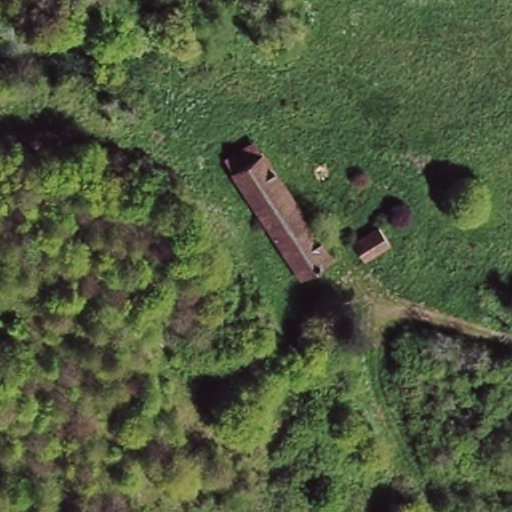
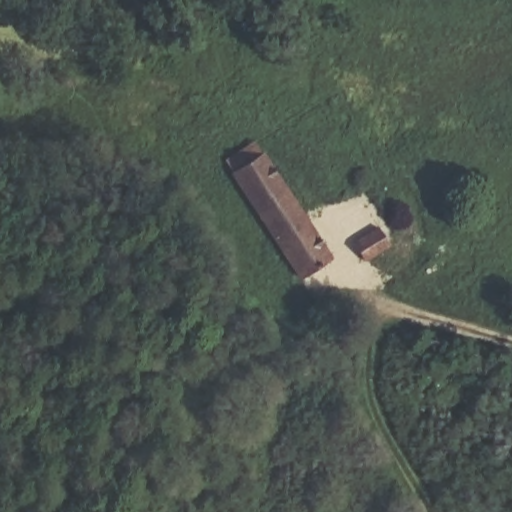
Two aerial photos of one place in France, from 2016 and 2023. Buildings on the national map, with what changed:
unchanged [(252,154),(261,149),(327,254),(298,271),(225,155),(245,142),(252,154)]
unchanged [(389,245),(365,260),(355,244),(379,229),(389,245)]

